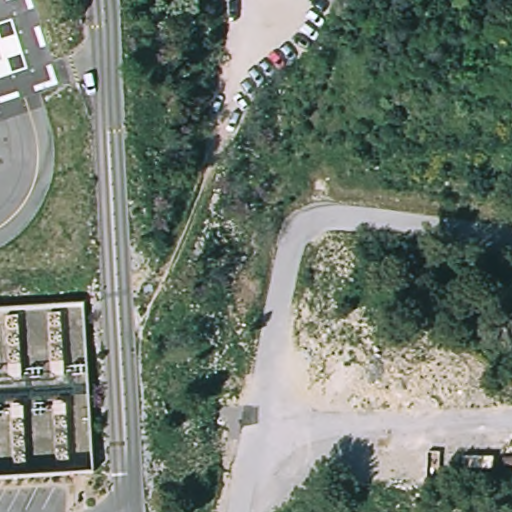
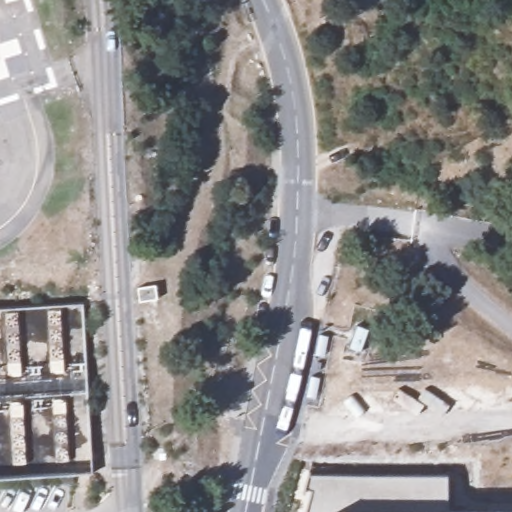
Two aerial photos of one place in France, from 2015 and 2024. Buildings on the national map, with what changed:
new [(447,511),(512,511),(512,512),(305,512),(312,491),(305,489),(308,475),(447,475),(447,511)]

